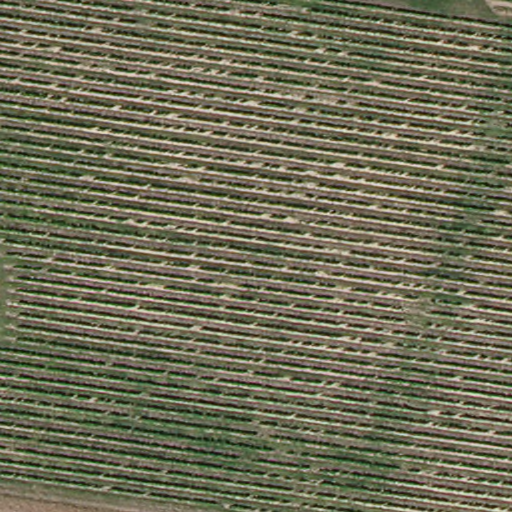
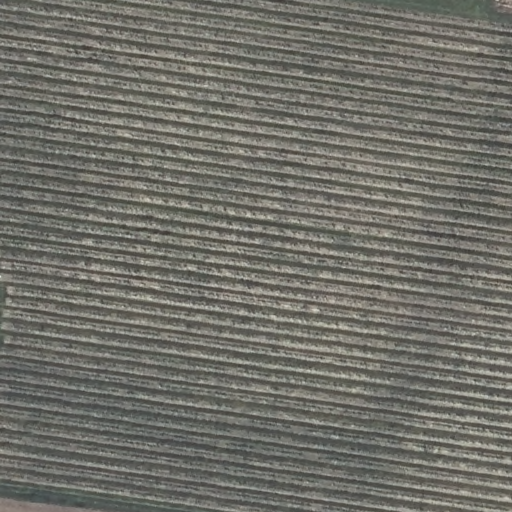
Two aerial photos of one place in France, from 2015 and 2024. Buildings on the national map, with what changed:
[]

